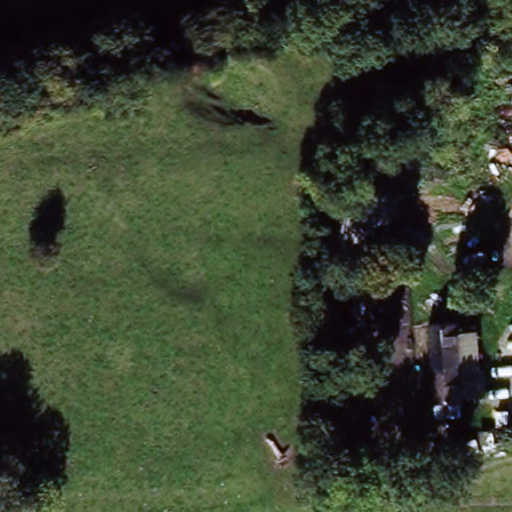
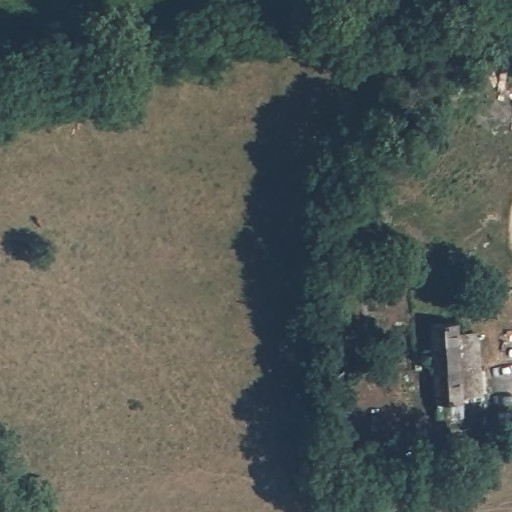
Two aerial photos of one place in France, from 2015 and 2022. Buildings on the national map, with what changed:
unchanged [(429,314),(459,310),(464,366),(435,368),(429,314)]
unchanged [(464,366),(469,415),(439,418),(435,368),(464,366)]

